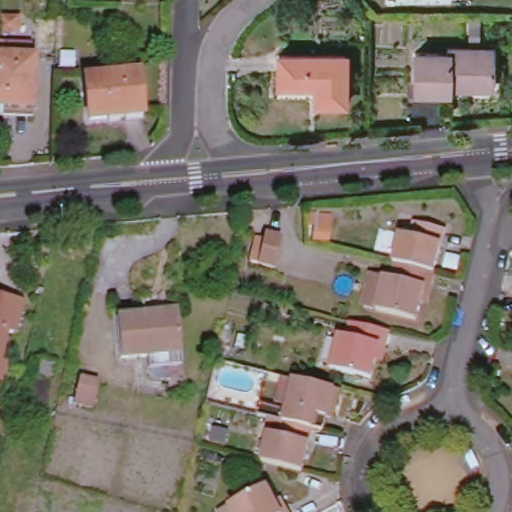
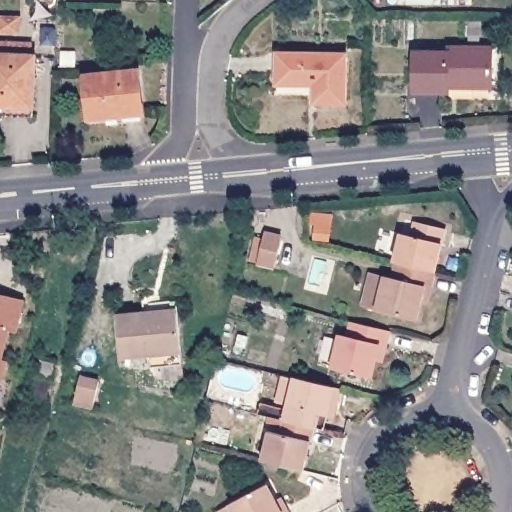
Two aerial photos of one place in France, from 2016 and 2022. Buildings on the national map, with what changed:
unchanged [(0,32),(0,17),(18,18),(18,32),(0,32)]
unchanged [(0,115),(0,56),(0,57),(1,45),(18,45),(31,45),(31,51),(30,57),(33,57),(32,107),(32,117),(0,115)]
unchanged [(413,53),(449,52),(449,48),(490,48),(490,84),(473,84),(473,87),(448,87),(448,93),(413,92),(413,53)]
unchanged [(313,103),(314,86),(277,85),(278,54),(345,55),(344,104),(313,103)]
unchanged [(85,77),(138,72),(142,114),(90,119),(85,77)]
unchanged [(394,267),(392,266),(400,237),(410,240),(414,225),(442,232),(431,276),(394,267)]
unchanged [(268,235),(285,238),(279,267),(262,263),(255,262),(260,239),(267,240),(268,235)]
unchanged [(418,307),(415,323),(376,314),(362,311),(370,276),(384,280),(390,281),(394,267),(431,276),(427,292),(423,307),(418,307)]
unchanged [(21,305),(13,337),(6,335),(0,359),(0,300),(21,305)]
unchanged [(150,355),(122,357),(118,317),(151,315),(150,307),(177,305),(182,363),(151,367),(150,355)]
unchanged [(377,362),(373,380),(334,371),(342,336),(350,338),(353,324),(390,333),(385,348),(382,364),(377,362)]
unchanged [(4,366),(0,381),(0,365),(4,366)]
unchanged [(73,395),(82,371),(100,377),(91,402),(73,395)]
unchanged [(282,422),(257,416),(258,410),(259,407),(285,414),(286,406),(276,403),(283,377),(293,379),(335,390),(341,391),(333,421),(327,419),(324,432),(313,430),(285,423),(282,422)]
unchanged [(265,462),(271,436),(282,438),(285,423),(313,430),(303,470),(265,462)]
unchanged [(233,508),(268,489),(276,504),(281,502),(287,512),(226,512),(233,508)]

